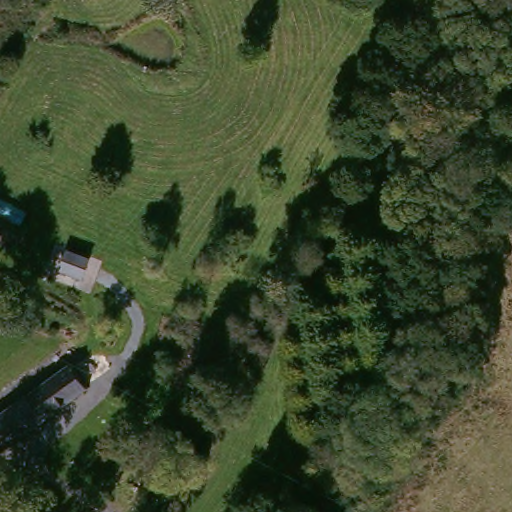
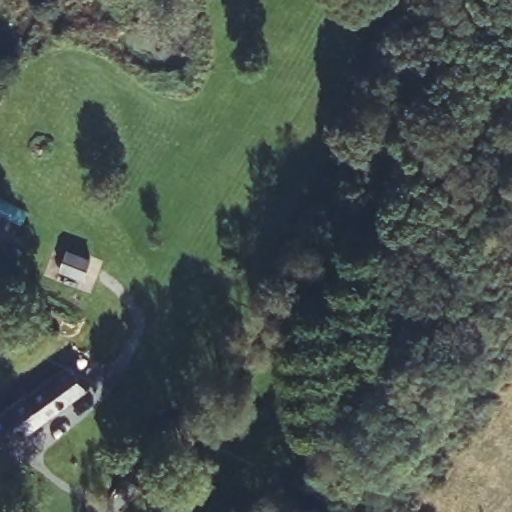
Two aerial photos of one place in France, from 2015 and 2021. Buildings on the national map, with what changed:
unchanged [(86,281),(62,273),(69,253),(92,261),(86,281)]
unchanged [(41,394),(57,382),(68,374),(86,397),(2,457),(0,455),(0,419),(39,391),(41,394)]

